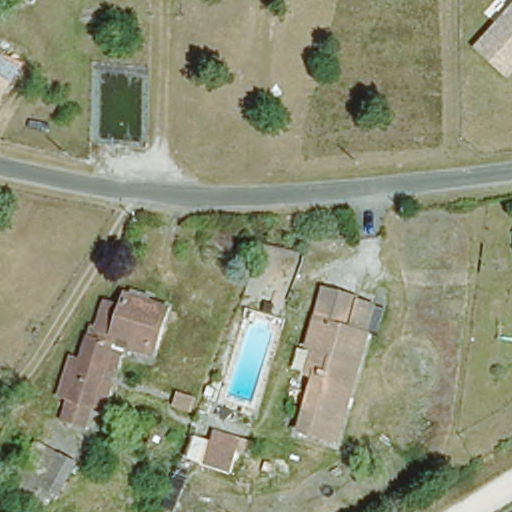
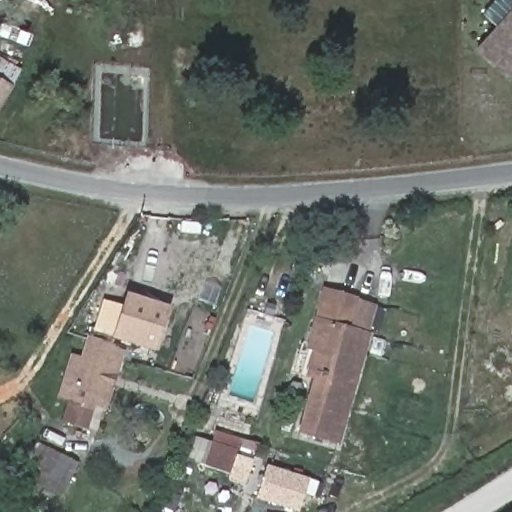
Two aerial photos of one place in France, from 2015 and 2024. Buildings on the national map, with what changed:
unchanged [(474,45),(512,3),(512,73),(509,77),(474,45)]
unchanged [(18,70),(10,84),(0,102),(0,60),(18,70)]
unchanged [(358,297),(372,301),(364,331),(368,332),(341,441),(303,431),(318,377),(307,374),(315,346),(310,345),(325,289),(358,297)]
unchanged [(89,432),(63,425),(70,397),(61,395),(72,353),(82,356),(91,323),(96,323),(103,298),(123,303),(126,291),(161,301),(148,346),(116,337),(95,407),(89,432)]
unchanged [(146,354),(145,356),(125,350),(107,411),(95,407),(116,337),(148,346),(146,354)]
unchanged [(236,472),(209,465),(214,445),(216,434),(243,440),(240,452),(240,455),(239,462),(236,472)]
unchanged [(37,451),(67,458),(56,496),(27,487),(37,451)]
unchanged [(249,477),(237,473),(239,462),(252,465),(249,477)]
new [(295,512),(256,500),(266,466),(324,485),(320,499),(304,494),(298,512),(295,512)]

